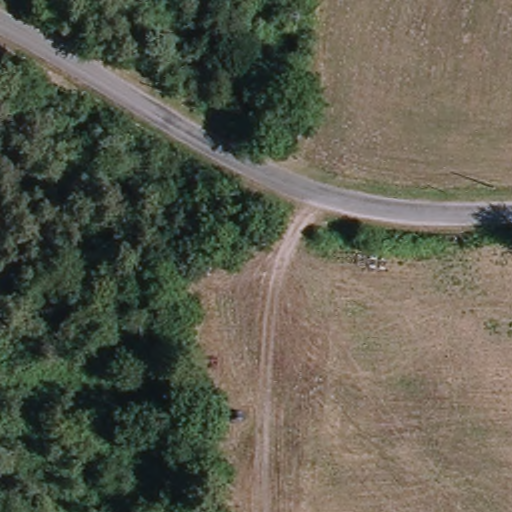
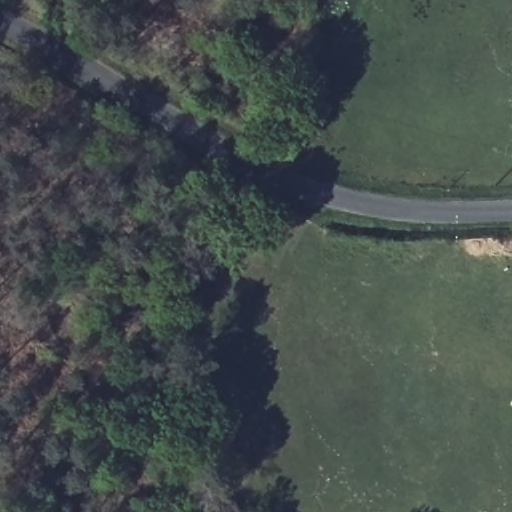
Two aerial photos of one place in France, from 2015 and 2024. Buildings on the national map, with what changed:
[]

